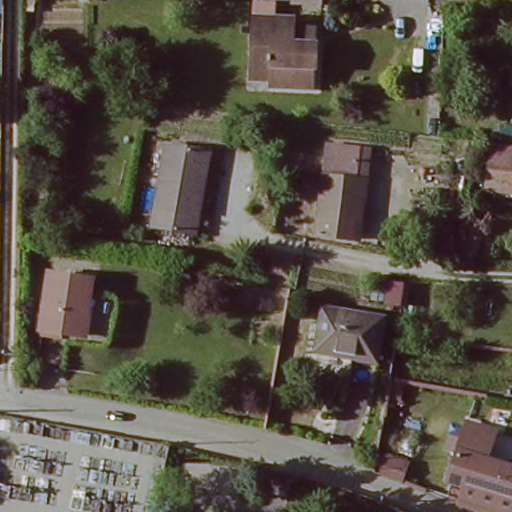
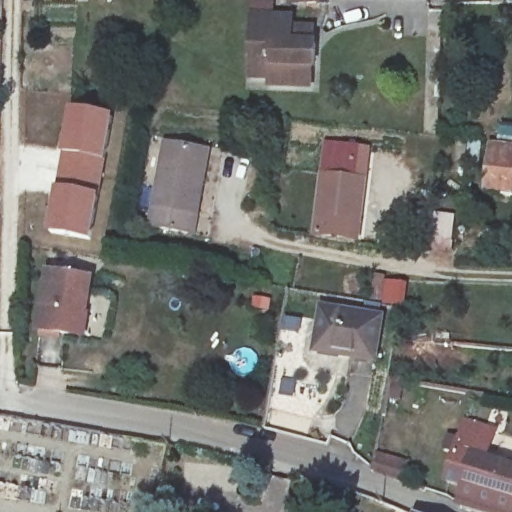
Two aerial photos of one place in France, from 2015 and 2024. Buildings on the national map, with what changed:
unchanged [(287,81),(264,78),(264,71),(246,69),(249,11),(284,13),(284,20),(300,22),(299,37),(312,39),(310,60),(308,82),(287,81)]
new [(71,107),(115,115),(92,242),(51,235),(71,107)]
unchanged [(209,151),(195,236),(144,226),(161,142),(209,151)]
unchanged [(492,145),(512,147),(512,198),(488,195),(492,145)]
unchanged [(333,157),(364,162),(359,192),(370,195),(363,234),(324,227),(333,157)]
unchanged [(87,277),(82,322),(71,320),(68,336),(35,331),(43,272),(87,277)]
unchanged [(379,321),(370,367),(343,362),(343,357),(311,349),(320,311),(379,321)]
unchanged [(446,485),(463,427),(495,436),(490,463),(512,467),(512,503),(510,512),(473,512),(455,508),(461,488),(446,485)]
unchanged [(365,477),(368,453),(401,463),(395,487),(365,477)]

